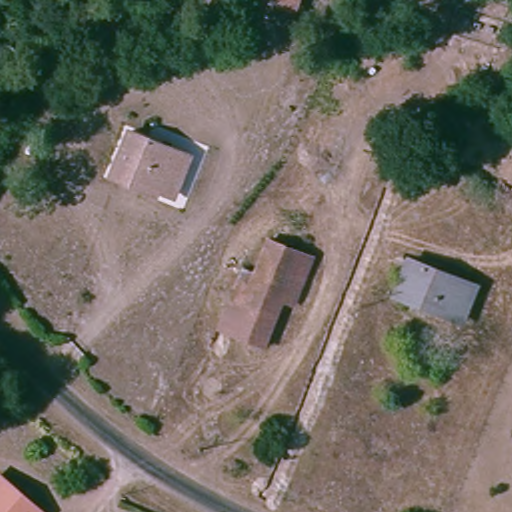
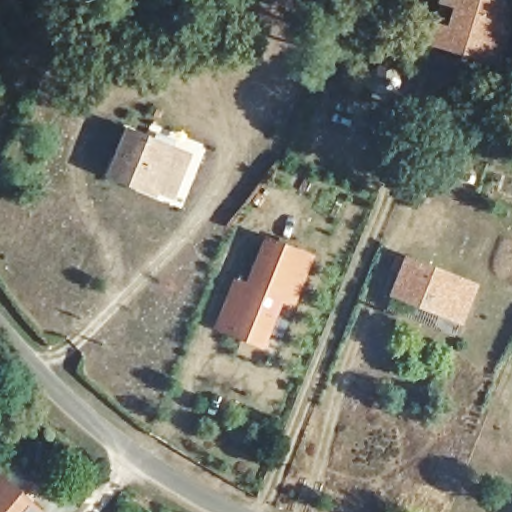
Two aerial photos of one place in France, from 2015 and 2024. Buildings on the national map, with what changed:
unchanged [(240,2),(241,0),(300,0),(293,20),(240,2)]
new [(512,18),(498,69),(420,42),(427,20),(445,25),(448,16),(429,13),(433,0),(509,0),(512,1),(512,18)]
unchanged [(136,131),(194,157),(176,197),(139,179),(135,186),(114,176),(136,131)]
unchanged [(216,330),(236,284),(249,289),(270,241),(314,261),(295,307),(282,302),(264,348),(216,330)]
unchanged [(477,285),(465,321),(397,295),(410,260),(477,285)]
unchanged [(32,512),(0,512),(0,481),(32,512)]

